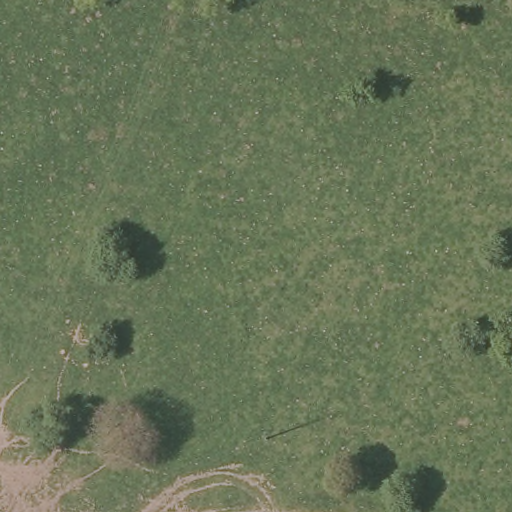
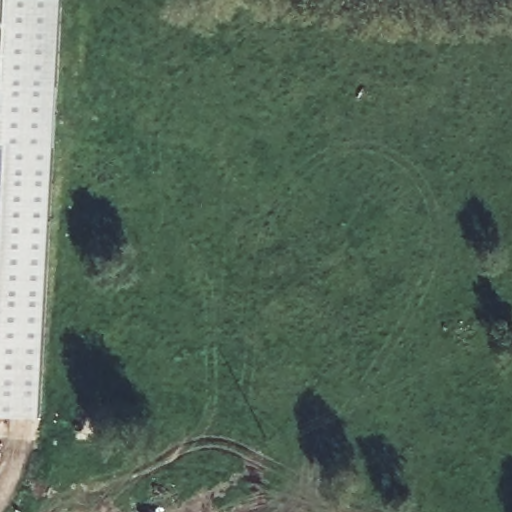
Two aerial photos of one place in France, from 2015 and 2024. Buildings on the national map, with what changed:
new [(0,413),(0,0),(63,0),(39,416),(0,413)]

